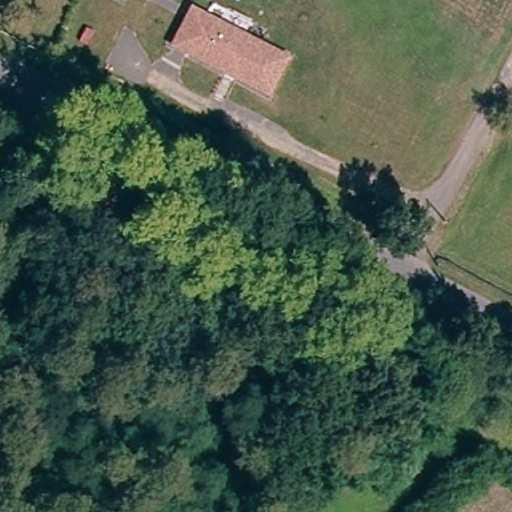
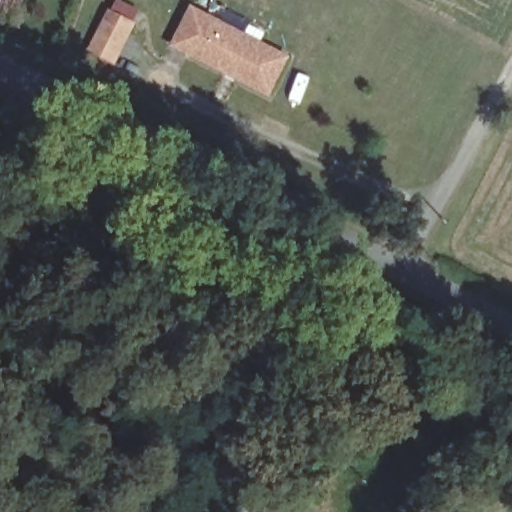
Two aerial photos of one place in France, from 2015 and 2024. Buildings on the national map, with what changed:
unchanged [(191,5),(290,57),(270,97),(171,44),(191,5)]
new [(115,66),(87,51),(109,9),(137,24),(115,66)]

